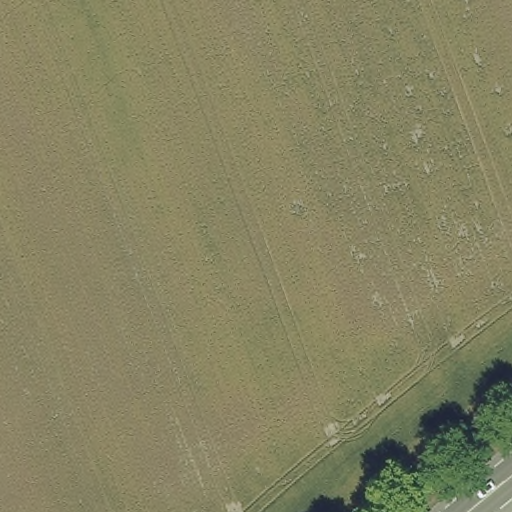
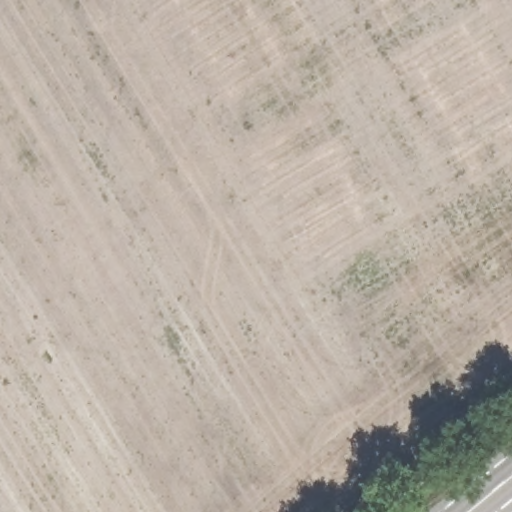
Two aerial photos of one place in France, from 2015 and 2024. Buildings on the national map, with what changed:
[]

